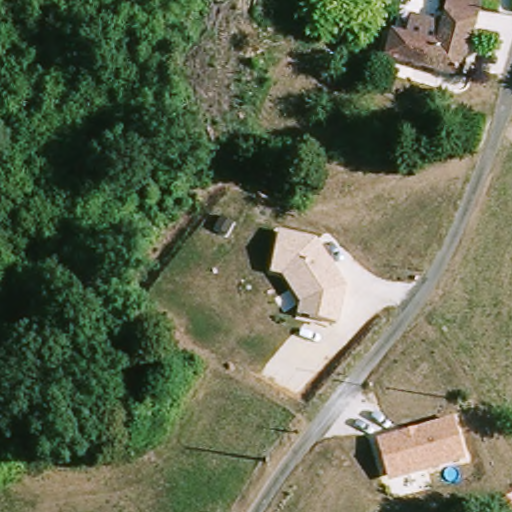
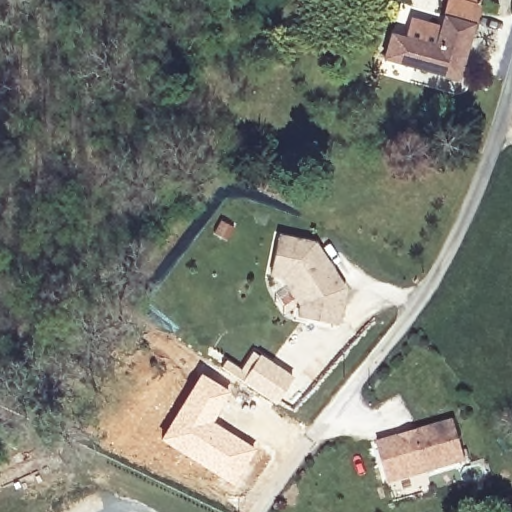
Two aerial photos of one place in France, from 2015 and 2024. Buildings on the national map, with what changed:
unchanged [(426,86),(427,81),(442,34),(452,1),(465,5),(480,11),(477,21),(452,96),(426,86)]
unchanged [(382,66),(391,36),(405,41),(410,23),(442,34),(427,81),(382,66)]
unchanged [(318,241),(347,289),(340,325),(297,316),(300,306),(281,280),(270,277),(280,233),(318,241)]
new [(225,356),(240,367),(252,349),(295,375),(275,403),(219,366),(225,356)]
new [(200,372),(231,391),(212,421),(257,447),(236,486),(158,439),(200,372)]
unchanged [(455,420),(467,463),(388,485),(375,441),(455,420)]

